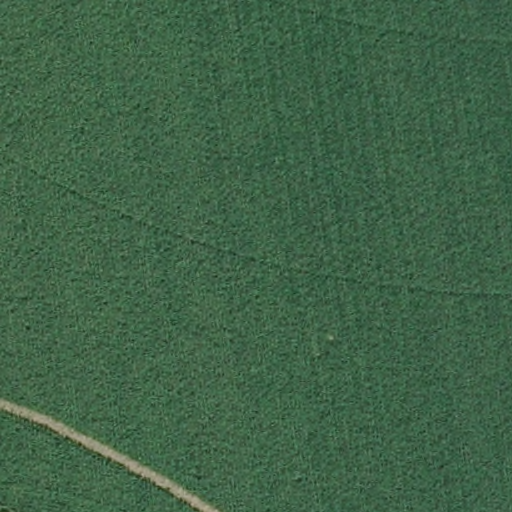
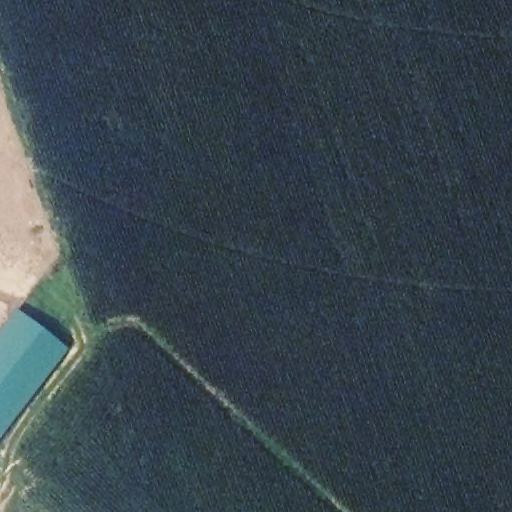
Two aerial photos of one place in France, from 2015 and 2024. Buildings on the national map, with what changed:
new [(67,350),(0,436),(0,328),(14,310),(67,350)]

